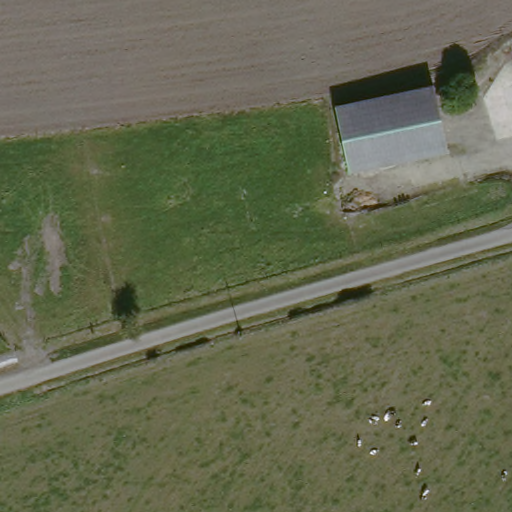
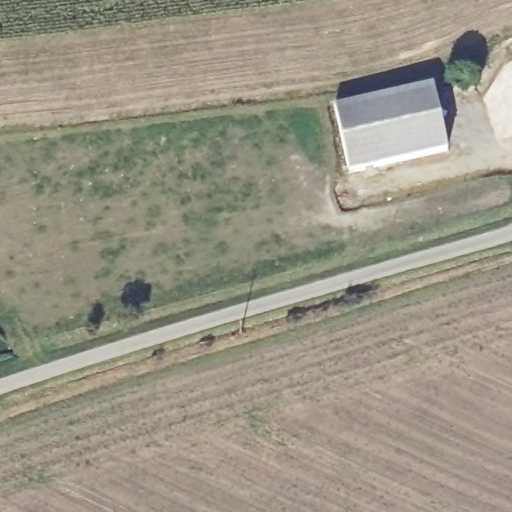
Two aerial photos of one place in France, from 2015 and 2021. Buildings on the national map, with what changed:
unchanged [(330,105),(430,83),(446,149),(346,172),(330,105)]

